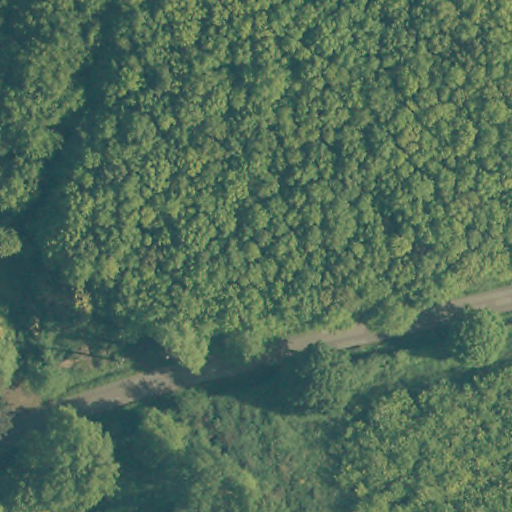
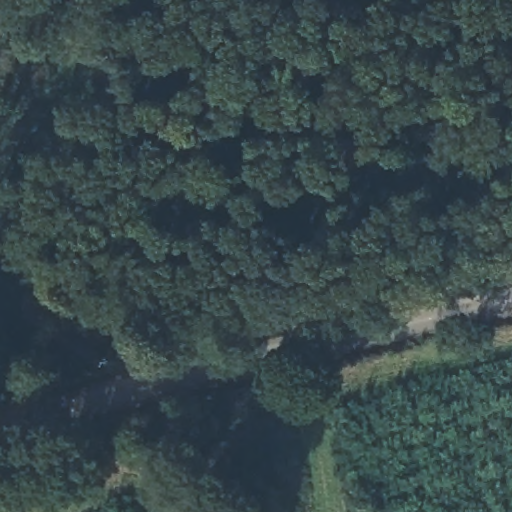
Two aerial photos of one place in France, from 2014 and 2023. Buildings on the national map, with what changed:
[]

